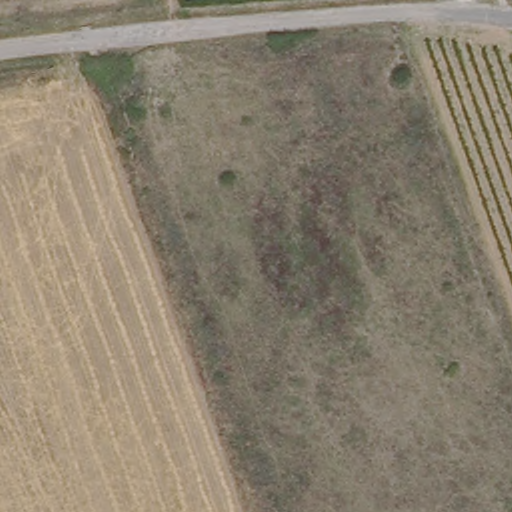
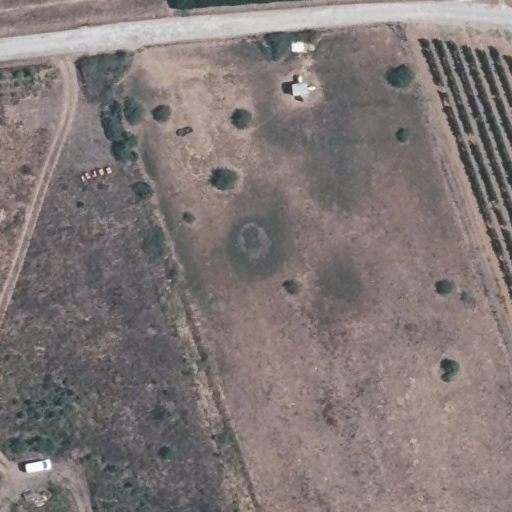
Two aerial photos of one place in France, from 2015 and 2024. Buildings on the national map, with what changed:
[]

